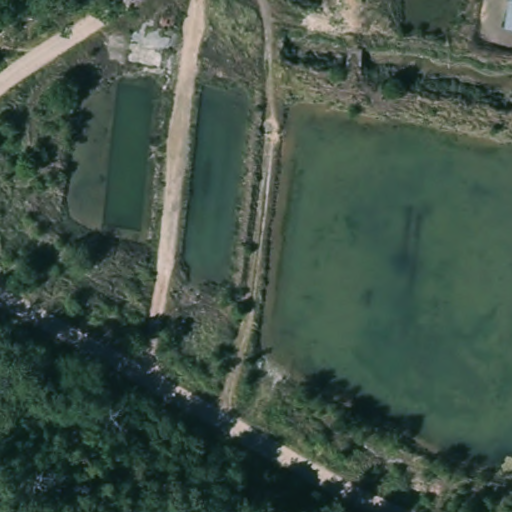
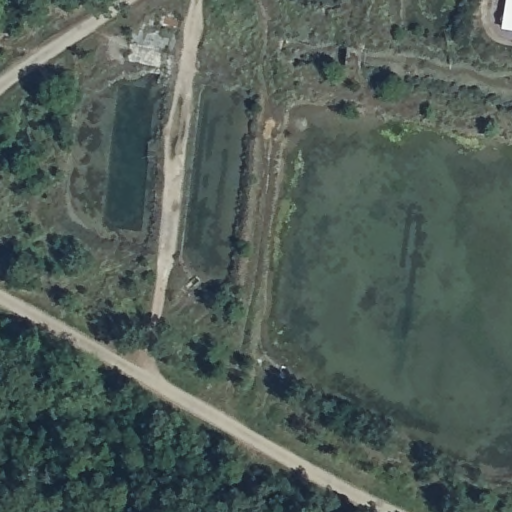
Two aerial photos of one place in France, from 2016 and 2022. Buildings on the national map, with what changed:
unchanged [(507,0),(512,0),(512,28),(503,26),(507,0)]

